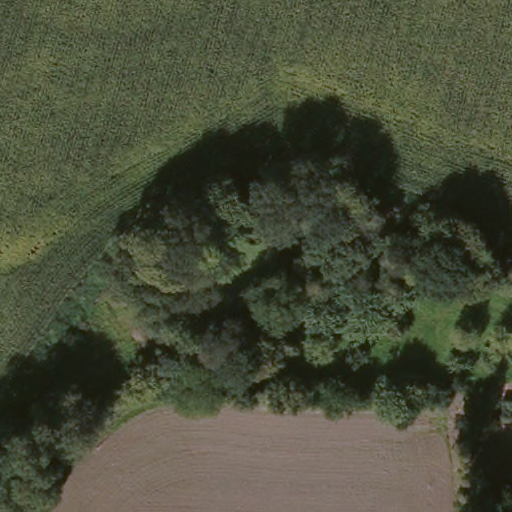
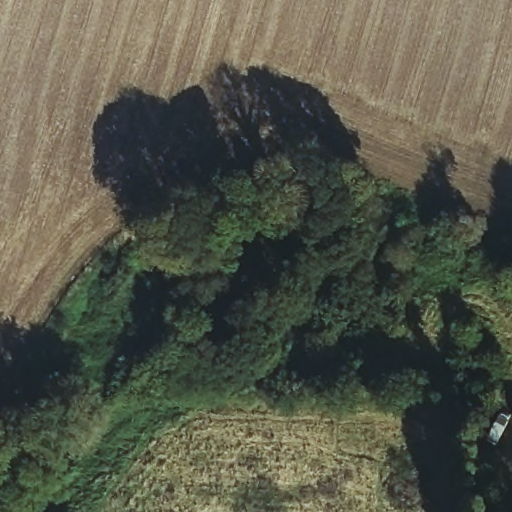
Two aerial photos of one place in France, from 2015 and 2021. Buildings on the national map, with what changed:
[]

